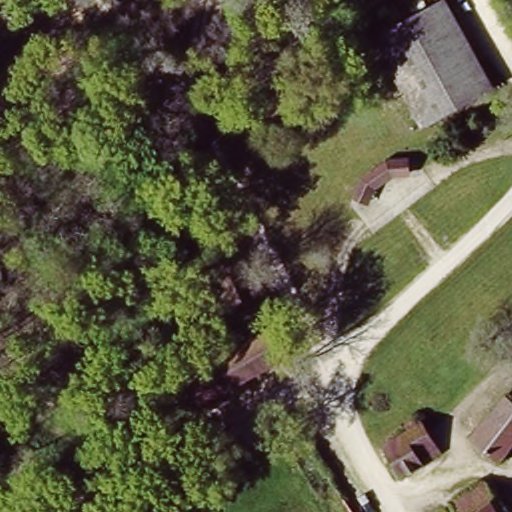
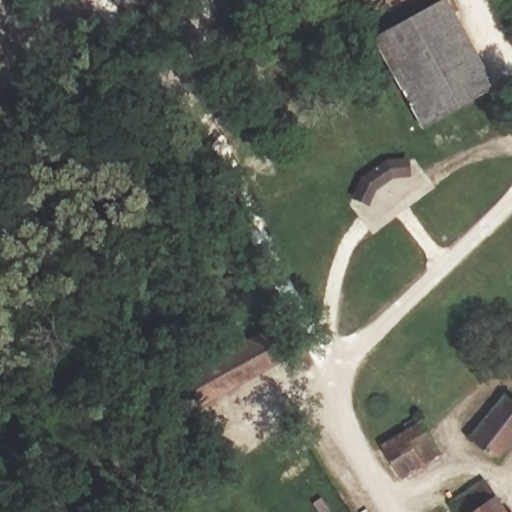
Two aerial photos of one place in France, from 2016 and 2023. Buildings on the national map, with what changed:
unchanged [(446,4),(493,93),(429,128),(382,40),(446,4)]
unchanged [(198,374),(193,367),(205,359),(209,367),(271,327),(288,356),(203,410),(186,382),(198,374)]
unchanged [(512,387),(512,444),(502,458),(488,449),(474,466),(459,454),(477,433),(512,387)]
unchanged [(429,425),(437,438),(419,449),(426,462),(404,474),(389,448),(429,425)]
unchanged [(494,512),(441,512),(441,511),(476,488),(494,512)]

